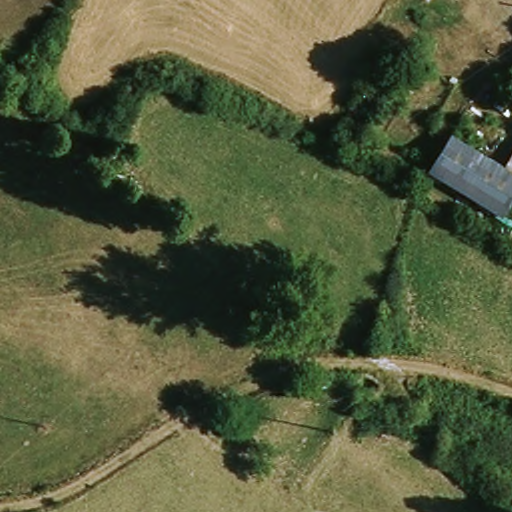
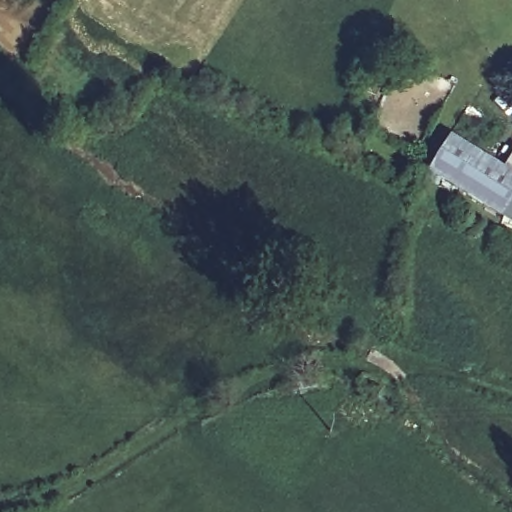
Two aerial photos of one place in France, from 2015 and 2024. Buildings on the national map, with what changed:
unchanged [(505,217),(432,175),(452,140),(512,174),(512,205),(505,217)]

